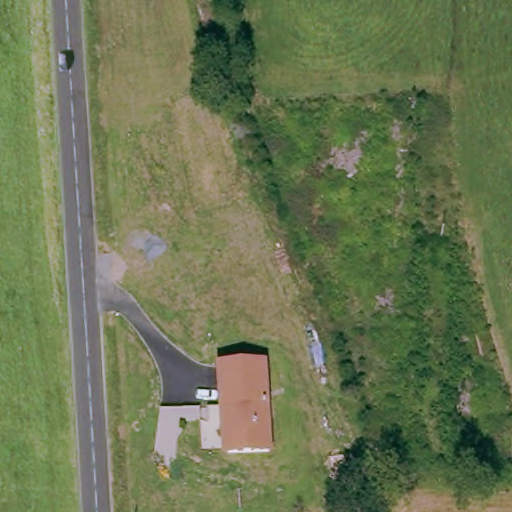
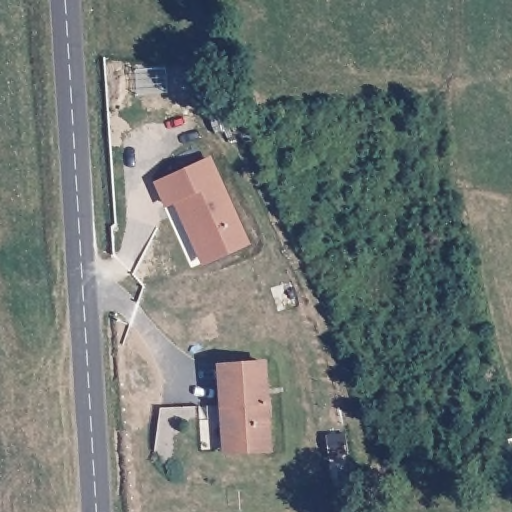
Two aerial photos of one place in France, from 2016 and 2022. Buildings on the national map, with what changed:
new [(173,204),(165,207),(152,183),(211,156),(250,245),(201,265),(173,204)]
unchanged [(227,451),(226,405),(220,404),(220,365),(265,363),(267,450),(227,451)]

